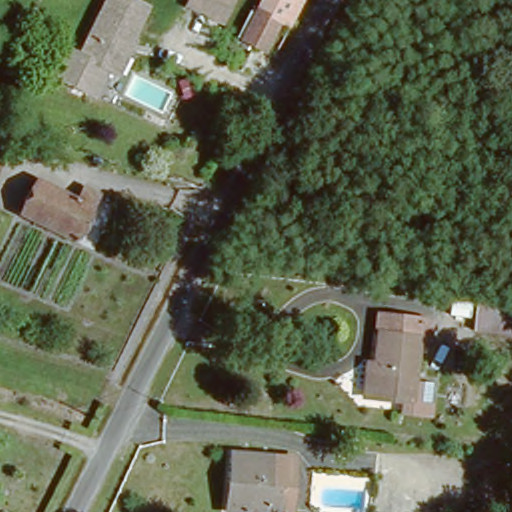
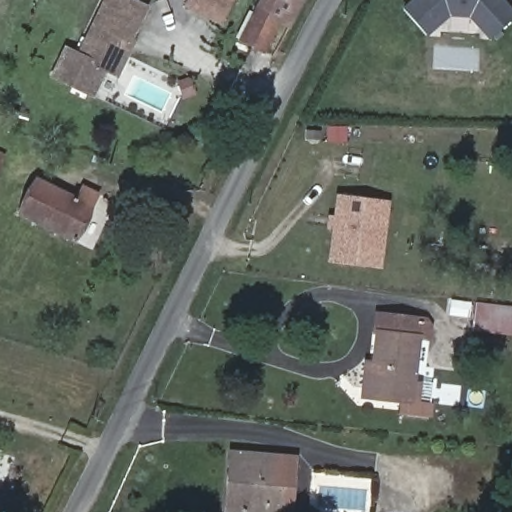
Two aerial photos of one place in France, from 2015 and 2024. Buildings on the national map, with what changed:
unchanged [(125,67),(114,62),(110,60),(97,87),(57,68),(70,40),(84,46),(105,0),(150,0),(135,32),(140,34),(125,67)]
unchanged [(234,4),(220,35),(182,18),(190,0),(225,0),(234,4)]
new [(256,9),(261,0),(303,0),(285,36),(270,32),(260,55),(242,45),(258,12),(256,9)]
new [(403,10),(414,0),(502,0),(512,11),(512,18),(491,39),(470,16),(447,16),(427,35),(403,10)]
demolished [(276,21),(260,55),(242,45),(258,12),(276,21)]
unchanged [(0,180),(0,163),(6,166),(0,180)]
unchanged [(91,202),(80,235),(19,215),(33,180),(91,202)]
new [(332,230),(327,229),(328,214),(333,215),(337,195),(390,200),(382,267),(329,262),(332,230)]
new [(477,303),(512,306),(512,336),(475,331),(477,303)]
unchanged [(367,399),(383,315),(426,323),(410,406),(367,399)]
unchanged [(288,512),(239,512),(231,511),(235,479),(225,478),(229,444),(295,452),(288,512)]

